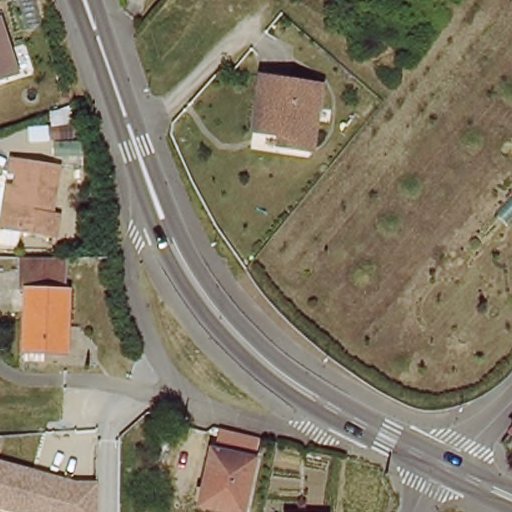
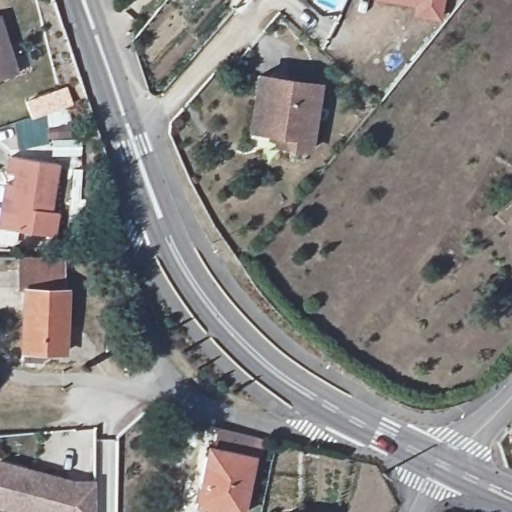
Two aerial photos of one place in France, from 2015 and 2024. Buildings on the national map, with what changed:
new [(445,20),(411,16),(413,6),(373,0),(447,0),(445,20)]
unchanged [(19,72),(0,78),(0,15),(19,72)]
unchanged [(270,136),(248,131),(263,76),(322,90),(303,154),(279,149),(268,147),(270,136)]
unchanged [(3,182),(6,159),(56,165),(53,206),(62,208),(60,235),(13,232),(0,231),(0,214),(3,182)]
unchanged [(56,278),(56,303),(64,303),(63,366),(22,365),(21,306),(13,306),(13,278),(56,278)]
unchanged [(508,434),(512,429),(512,437),(508,434)]
unchanged [(254,455),(242,512),(237,512),(200,504),(210,447),(254,455)]
unchanged [(97,483),(95,512),(8,512),(0,510),(0,461),(75,482),(97,483)]

